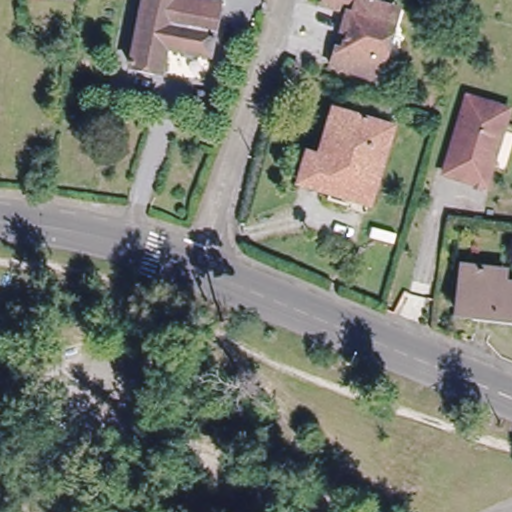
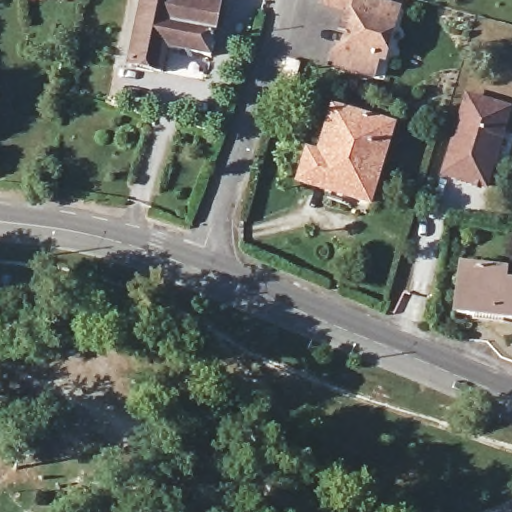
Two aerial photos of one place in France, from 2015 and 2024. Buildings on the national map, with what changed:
unchanged [(170,53),(163,75),(134,69),(146,0),(219,0),(218,6),(209,61),(170,53)]
unchanged [(377,4),(395,9),(403,11),(400,26),(389,64),(384,63),(381,80),(338,70),(343,50),(350,51),(353,37),(352,34),(350,33),(351,30),(352,28),(357,27),(358,18),(327,9),(329,0),(378,0),(377,4)]
unchanged [(504,111),(482,189),(442,176),(465,98),(504,111)]
unchanged [(395,122),(371,200),(302,179),(311,148),(322,151),(337,104),(395,122)]
unchanged [(470,262),(510,268),(508,280),(512,281),(512,317),(462,309),(470,262)]

